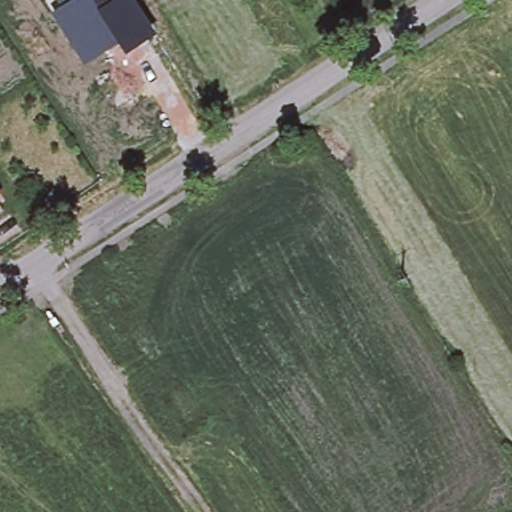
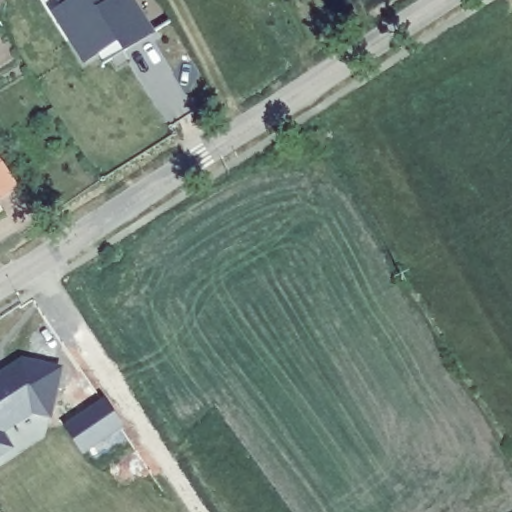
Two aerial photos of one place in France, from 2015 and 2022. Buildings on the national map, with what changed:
unchanged [(51,13),(60,6),(56,0),(133,0),(155,35),(123,55),(116,45),(83,65),(51,13)]
new [(62,367),(52,418),(32,414),(5,432),(13,448),(0,457),(0,372),(22,358),(62,367)]
new [(105,397),(125,427),(83,457),(64,426),(105,397)]

